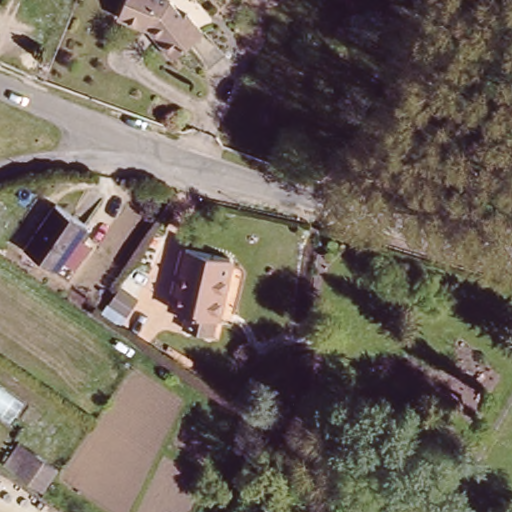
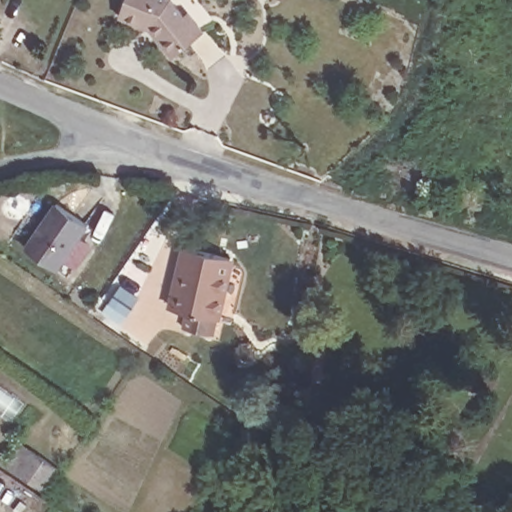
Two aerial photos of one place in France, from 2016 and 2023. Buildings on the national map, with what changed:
unchanged [(171,0),(181,12),(186,9),(201,29),(169,52),(154,32),(159,29),(152,18),(147,16),(144,22),(117,11),(122,0),(171,0)]
unchanged [(27,248),(56,202),(87,225),(57,270),(27,248)]
unchanged [(187,328),(189,310),(175,307),(185,248),(229,256),(216,332),(187,328)]
unchanged [(15,470),(7,465),(22,442),(50,461),(34,484),(34,485),(15,470)]

